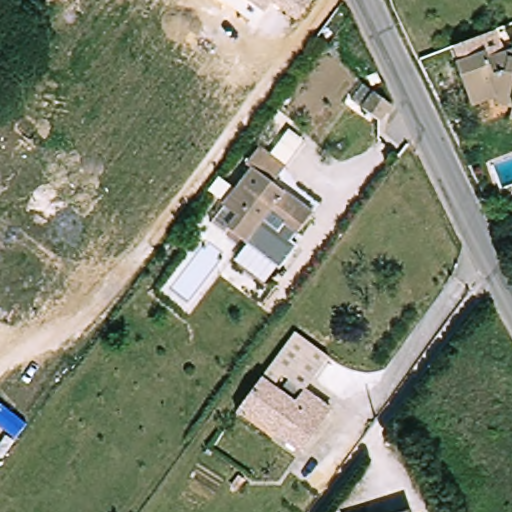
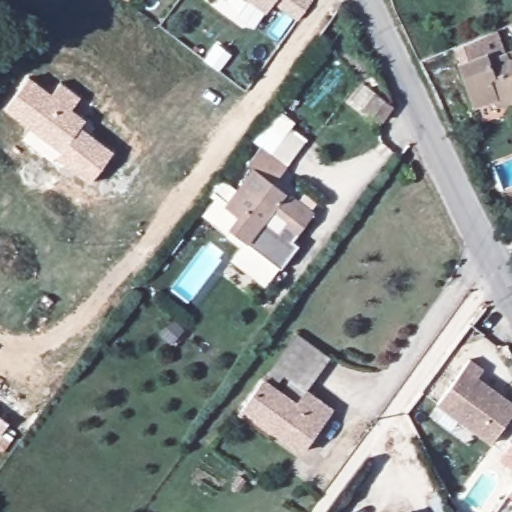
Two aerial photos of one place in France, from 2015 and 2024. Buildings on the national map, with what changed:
unchanged [(270,0),(263,9),(250,0),(308,0),(294,19),(270,0)]
new [(459,61),(453,47),(496,31),(504,51),(512,49),(512,57),(509,58),(490,64),(487,57),(458,69),(455,63),(459,61)]
unchanged [(499,100),(475,110),(458,69),(487,57),(490,64),(509,58),(512,57),(512,109),(500,106),(499,100)]
new [(51,93),(59,81),(81,96),(71,109),(86,119),(81,126),(113,151),(90,184),(56,159),(61,151),(4,109),(28,76),(51,93)]
unchanged [(382,124),(365,114),(385,84),(394,108),(382,124)]
unchanged [(292,165),(279,182),(318,212),(296,239),(302,244),(285,267),(233,227),(243,214),(230,204),(259,168),(252,163),(266,144),(292,165)]
unchanged [(294,386),(283,400),(263,384),(298,337),(330,357),(303,393),(294,386)]
new [(467,358),(483,369),(478,378),(512,403),(512,413),(490,446),(434,405),(467,358)]
unchanged [(333,416),(302,456),(242,412),(263,384),(283,400),(294,386),(333,416)]
new [(512,483),(512,498),(506,493),(512,483)]
unchanged [(411,511),(411,512),(406,512),(411,511)]

